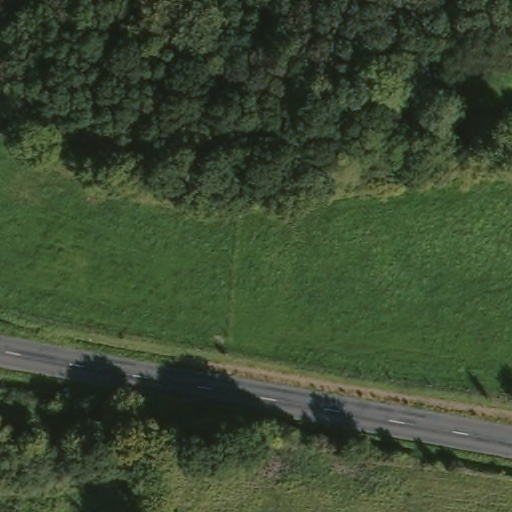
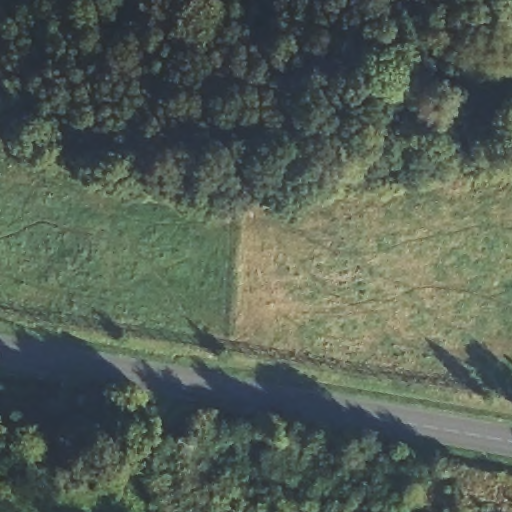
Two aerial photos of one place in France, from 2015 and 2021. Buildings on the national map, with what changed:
[]

